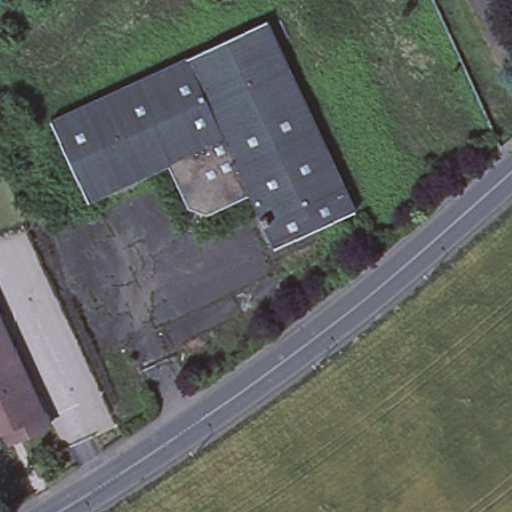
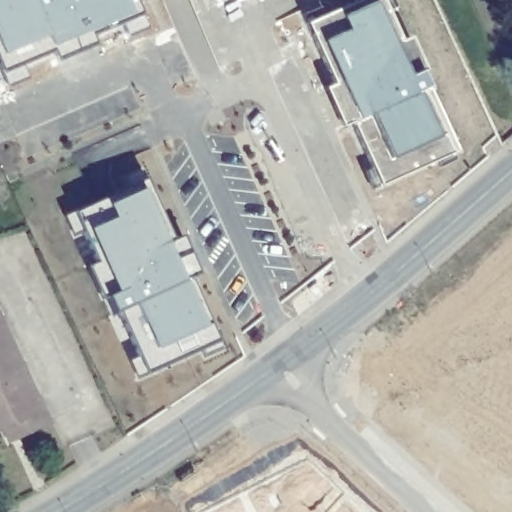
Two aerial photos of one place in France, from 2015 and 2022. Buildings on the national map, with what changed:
new [(127,0),(0,53),(0,0),(127,0)]
new [(380,0),(447,155),(375,191),(302,26),(364,0),(380,0)]
demolished [(250,218),(262,212),(249,182),(207,201),(187,195),(167,153),(123,172),(127,178),(92,194),(88,188),(53,114),(270,13),(357,204),(276,242),(272,234),(260,240),(250,218)]
unchanged [(487,148),(494,142),(497,147),(490,153),(487,148)]
new [(143,185),(200,331),(134,357),(65,215),(143,185)]
unchanged [(13,437),(7,424),(0,428),(0,303),(40,390),(47,387),(53,403),(58,416),(13,437)]
new [(308,463),(364,512),(208,512),(308,463)]

